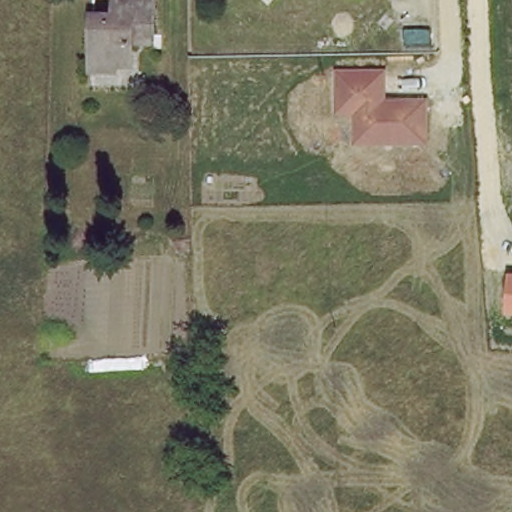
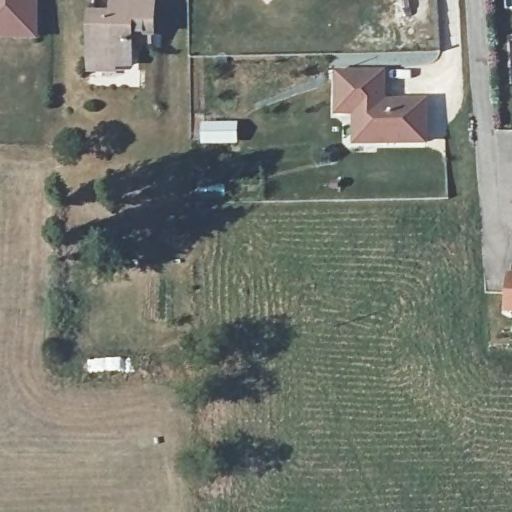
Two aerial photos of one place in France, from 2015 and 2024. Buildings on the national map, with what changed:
new [(0,0),(34,0),(34,8),(33,36),(0,36),(0,0)]
unchanged [(134,54),(134,74),(96,74),(96,29),(119,29),(117,4),(155,3),(155,41),(155,53),(134,54)]
unchanged [(386,67),(387,98),(430,98),(432,144),(356,146),(355,116),(336,116),(337,68),(386,67)]
unchanged [(512,273),(512,315),(505,314),(508,273),(512,273)]

